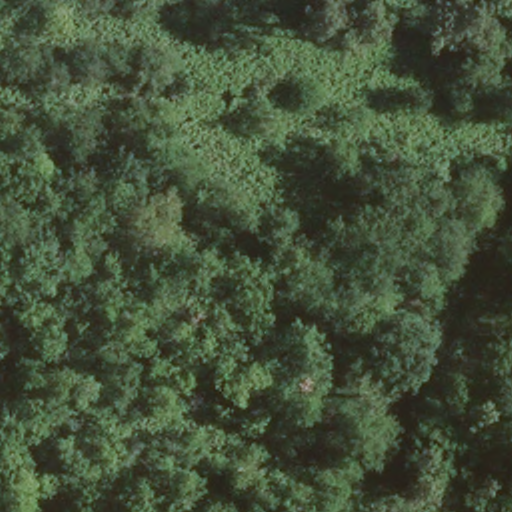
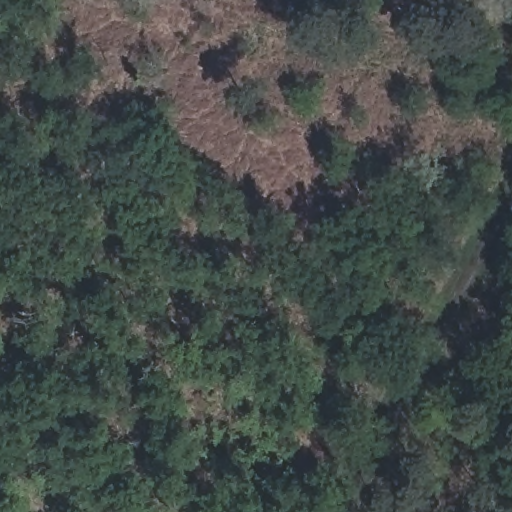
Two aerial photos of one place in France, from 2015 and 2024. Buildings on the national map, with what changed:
[]

